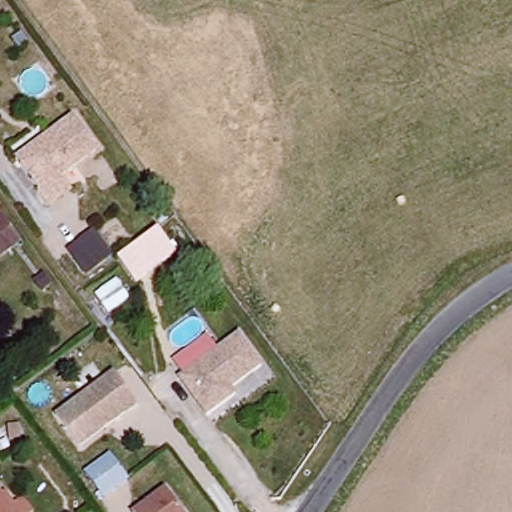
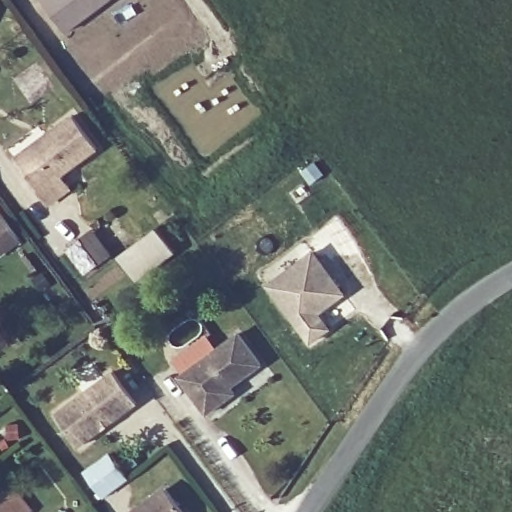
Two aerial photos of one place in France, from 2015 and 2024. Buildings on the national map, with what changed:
new [(65,31),(43,0),(106,0),(65,31)]
unchanged [(93,150),(55,177),(65,189),(40,207),(31,196),(34,192),(14,165),(10,158),(40,137),(70,116),(93,150)]
unchanged [(7,225),(24,251),(0,267),(0,229),(7,225)]
unchanged [(148,241),(159,256),(135,272),(124,257),(148,241)]
new [(313,256),(344,296),(318,316),(329,331),(311,344),(270,289),(313,256)]
unchanged [(239,339),(261,368),(230,394),(232,398),(206,419),(179,383),(239,339)]
unchanged [(78,452),(55,421),(114,377),(137,408),(78,452)]
unchanged [(110,459),(128,483),(104,501),(85,477),(110,459)]
unchanged [(180,512),(137,512),(165,492),(180,512)]
unchanged [(5,512),(0,512),(0,504),(5,512)]

